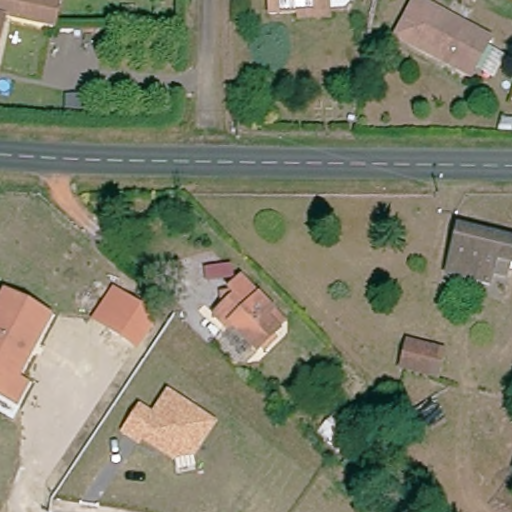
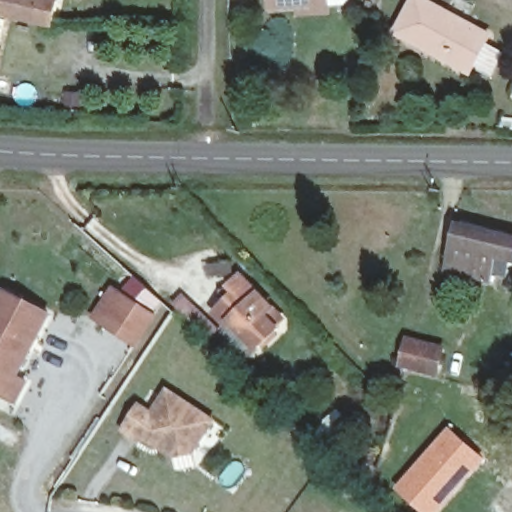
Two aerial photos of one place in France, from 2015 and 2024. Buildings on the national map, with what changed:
unchanged [(0,12),(0,0),(63,0),(60,20),(15,13),(0,12)]
unchanged [(296,18),(297,9),(270,10),(270,0),(329,0),(329,9),(329,19),(296,18)]
unchanged [(495,73),(478,64),(472,76),(398,36),(416,0),(426,0),(493,35),(488,44),(506,52),(495,73)]
unchanged [(1,74),(0,81),(0,12),(15,13),(1,74)]
unchanged [(497,275),(447,262),(455,219),(512,232),(512,279),(497,275)]
unchanged [(279,327),(259,348),(236,325),(232,328),(217,315),(229,302),(235,308),(244,300),(232,288),(244,277),(274,305),(289,318),(279,327)]
unchanged [(135,345),(107,325),(94,317),(114,288),(126,296),(155,316),(135,345)]
unchanged [(18,376),(28,381),(18,401),(0,392),(0,298),(4,290),(49,313),(18,376)]
unchanged [(408,366),(412,343),(418,345),(448,351),(442,375),(414,368),(408,366)]
unchanged [(217,419),(193,455),(194,463),(175,469),(174,460),(144,439),(142,442),(120,430),(138,401),(152,409),(165,386),(217,419)]
new [(486,458),(439,512),(421,512),(394,489),(447,426),(486,458)]

